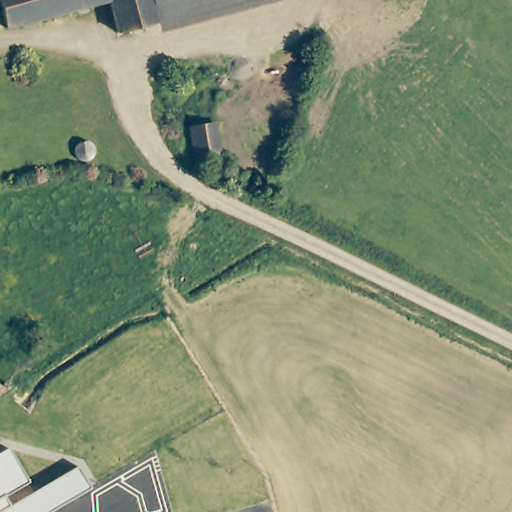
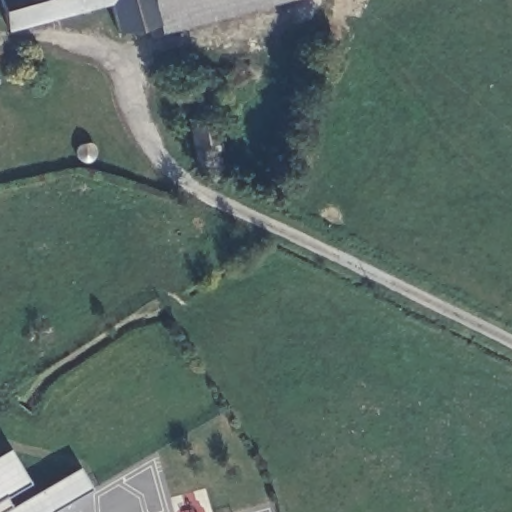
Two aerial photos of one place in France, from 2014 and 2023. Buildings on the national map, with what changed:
unchanged [(114,36),(107,7),(5,31),(0,12),(0,0),(149,0),(154,25),(155,27),(114,36)]
unchanged [(149,0),(251,0),(154,25),(149,0)]
unchanged [(222,162),(210,165),(199,166),(192,125),(215,121),(222,162)]
unchanged [(28,483),(5,495),(10,506),(79,467),(90,490),(52,512),(0,512),(0,453),(8,448),(28,483)]

